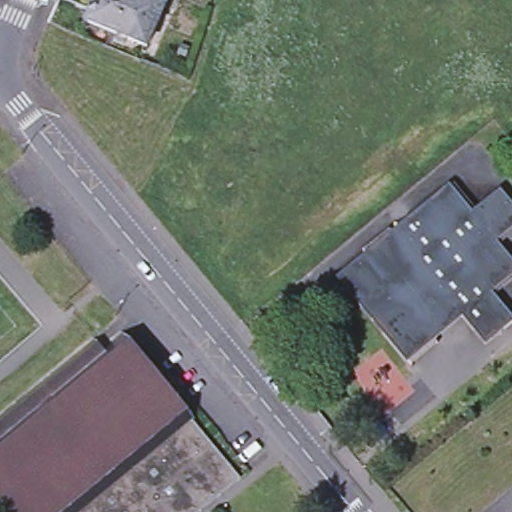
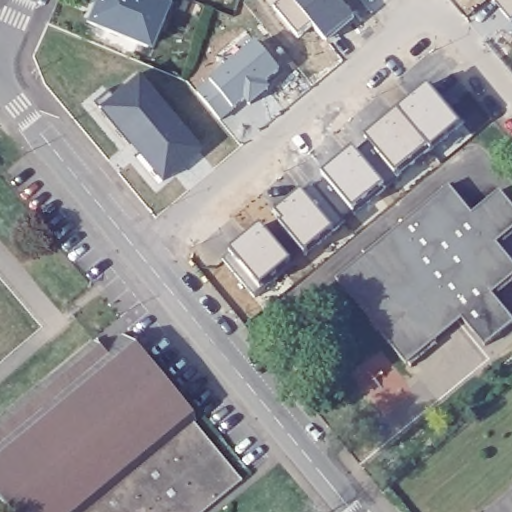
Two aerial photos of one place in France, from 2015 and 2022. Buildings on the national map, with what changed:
unchanged [(148,48),(88,24),(97,0),(148,0),(165,7),(148,48)]
new [(325,41),(313,26),(299,39),(274,10),(286,0),(338,0),(353,17),(356,20),(327,44),(325,41)]
new [(512,0),(512,24),(492,0),(512,0)]
new [(251,106),(246,100),(221,121),(198,94),(258,45),(279,72),(264,85),(269,91),(268,92),(251,105),(251,106)]
new [(142,73),(200,145),(163,179),(101,107),(142,73)]
new [(427,79),(459,120),(303,247),(278,218),(281,215),(274,207),(427,79)]
unchanged [(404,370),(333,285),(445,190),(469,219),(498,194),(512,211),(512,234),(495,248),(512,268),(512,280),(491,298),(512,325),(512,328),(484,350),(460,323),(434,345),(404,370)]
new [(233,247),(259,222),(288,256),(258,281),(251,290),(221,257),(233,247)]
unchanged [(103,356),(123,341),(196,428),(195,429),(239,485),(206,512),(2,512),(0,510),(0,426),(96,347),(103,356)]

